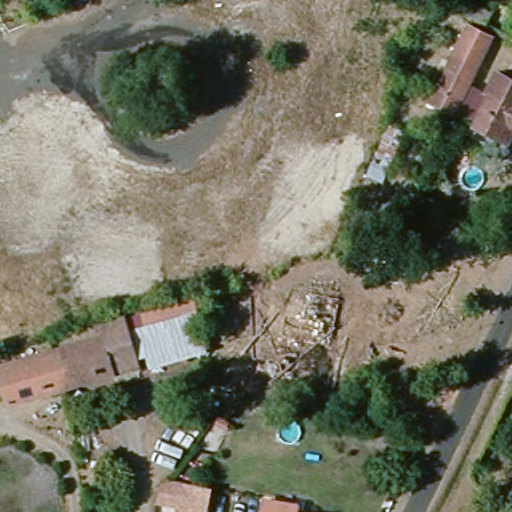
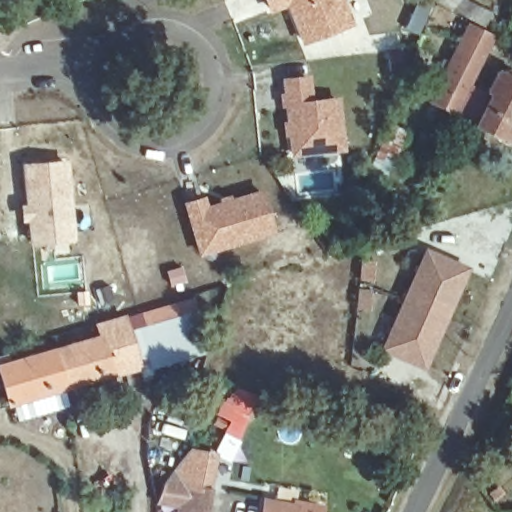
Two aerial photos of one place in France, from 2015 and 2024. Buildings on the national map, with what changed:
new [(302,44),(287,6),(269,13),(264,0),(345,0),(354,23),(302,44)]
unchanged [(464,124),(465,121),(452,113),(450,118),(430,108),(455,59),(472,28),(489,37),(472,68),(466,80),(481,87),(491,68),(512,78),(512,138),(508,146),(464,124)]
new [(312,75),(314,98),(340,95),(346,150),(290,156),(288,136),(283,137),(282,122),(285,122),(284,107),(279,107),(278,93),(282,93),(281,78),(312,75)]
unchanged [(387,118),(407,128),(379,185),(360,176),(387,118)]
new [(69,159),(75,242),(29,245),(27,220),(21,221),(19,203),(25,203),(22,161),(69,159)]
new [(205,195),(208,204),(217,202),(216,198),(232,193),(233,197),(263,188),(276,232),(199,255),(183,202),(205,195)]
new [(470,265),(426,369),(379,350),(424,245),(470,265)]
demolished [(344,299),(331,341),(306,336),(295,366),(256,354),(263,331),(279,335),(288,306),(272,302),(281,281),(344,299)]
new [(95,321),(126,313),(127,316),(196,296),(209,353),(140,369),(133,371),(132,365),(122,326),(97,334),(95,321)]
unchanged [(122,326),(132,365),(108,372),(97,334),(122,326)]
unchanged [(45,350),(97,334),(108,372),(55,388),(45,350)]
unchanged [(30,396),(19,358),(45,350),(55,388),(30,396)]
unchanged [(167,487),(168,484),(210,490),(206,512),(178,512),(179,505),(165,503),(167,487)]
unchanged [(293,512),(260,512),(262,499),(275,501),(294,504),(293,512)]

